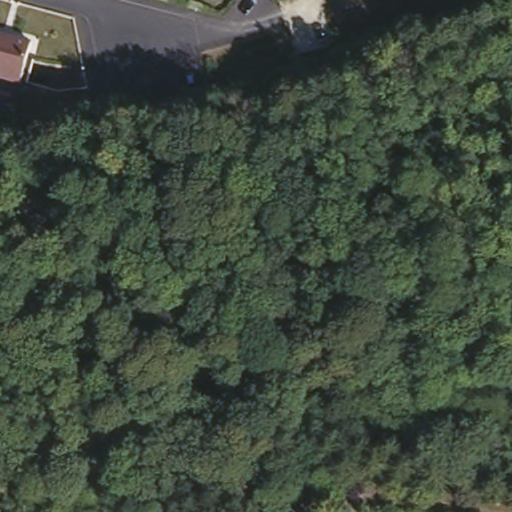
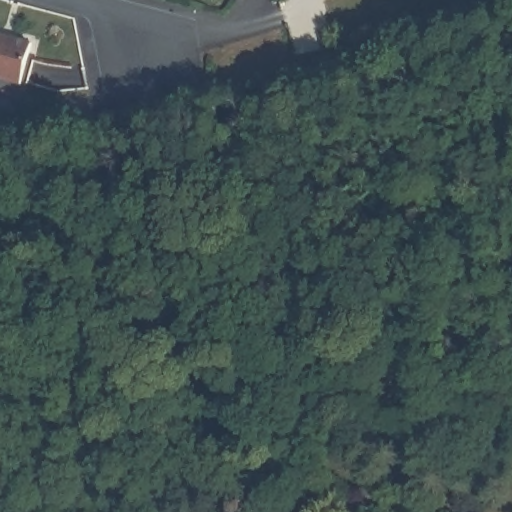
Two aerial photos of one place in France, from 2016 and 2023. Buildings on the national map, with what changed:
unchanged [(20,84),(1,78),(2,75),(0,74),(0,33),(32,42),(20,84)]

